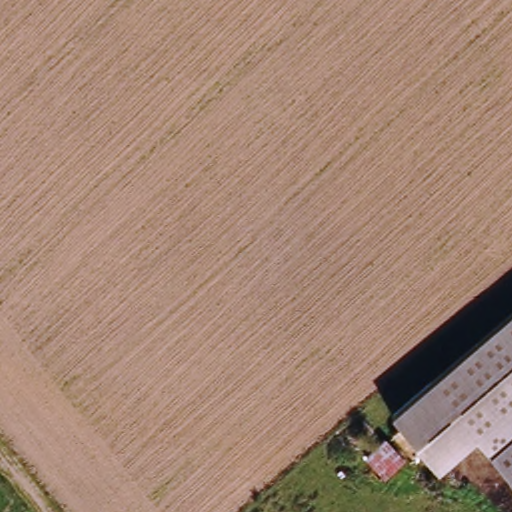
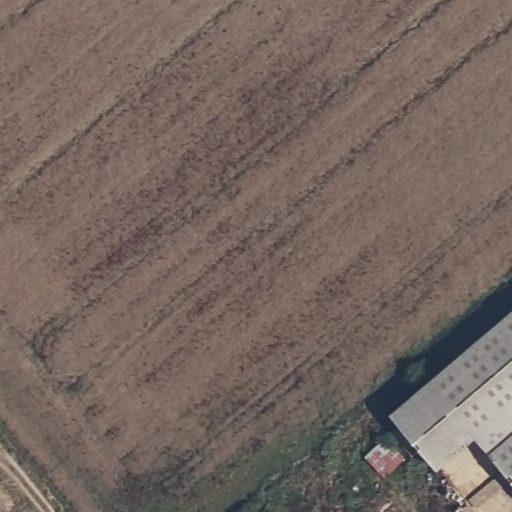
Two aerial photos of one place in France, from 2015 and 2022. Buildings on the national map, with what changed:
unchanged [(437,468),(392,414),(512,313),(512,479),(476,436),(437,468)]

